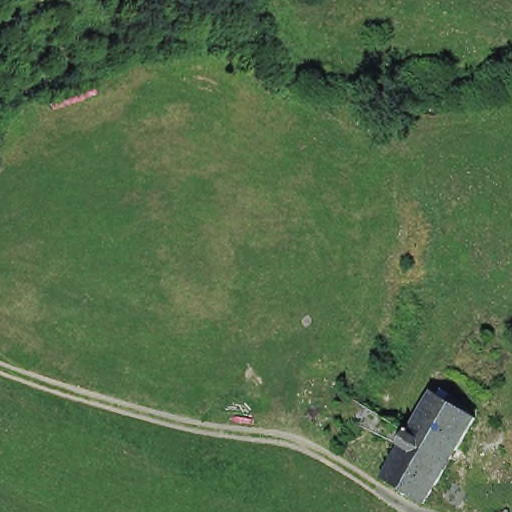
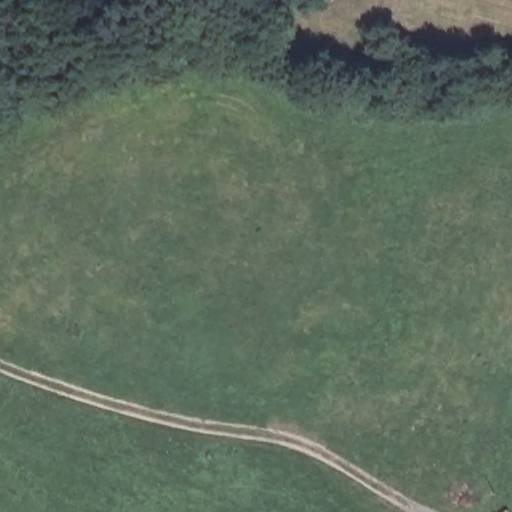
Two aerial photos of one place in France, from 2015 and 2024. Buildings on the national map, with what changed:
demolished [(373,475),(425,388),(469,414),(450,446),(455,449),(450,456),(445,453),(417,501),(373,475)]

